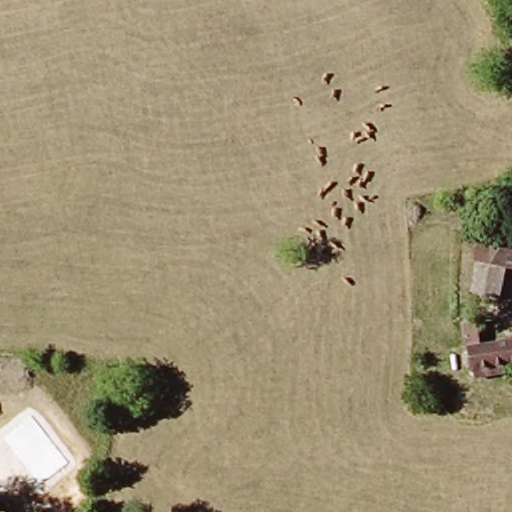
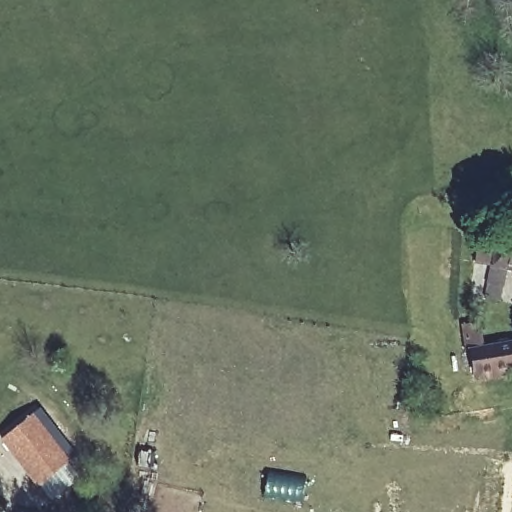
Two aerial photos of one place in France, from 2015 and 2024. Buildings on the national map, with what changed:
unchanged [(498,267),(495,299),(482,298),(492,235),(512,237),(512,270),(498,267)]
unchanged [(497,363),(498,371),(472,375),(467,343),(512,336),(512,360),(497,363)]
new [(32,411),(70,460),(37,486),(0,437),(32,411)]

